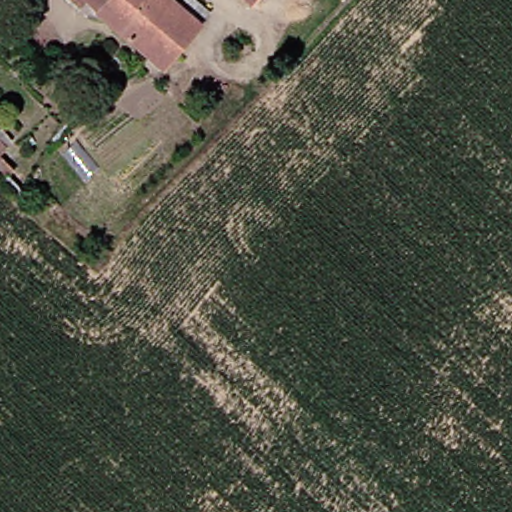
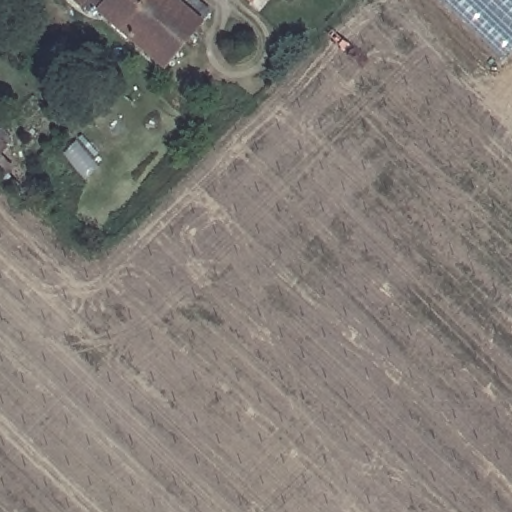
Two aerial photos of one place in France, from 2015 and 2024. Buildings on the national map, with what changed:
unchanged [(85,12),(80,8),(70,19),(51,2),(53,0),(95,0),(85,12)]
unchanged [(164,10),(172,2),(195,21),(152,71),(85,12),(95,0),(152,0),(164,10)]
unchanged [(246,4),(241,0),(249,0),(246,4)]
new [(501,60),(439,0),(512,0),(512,49),(501,60)]
unchanged [(0,149),(0,130),(10,140),(0,149)]
unchanged [(2,175),(15,188),(7,194),(0,185),(0,163),(7,171),(2,175)]

